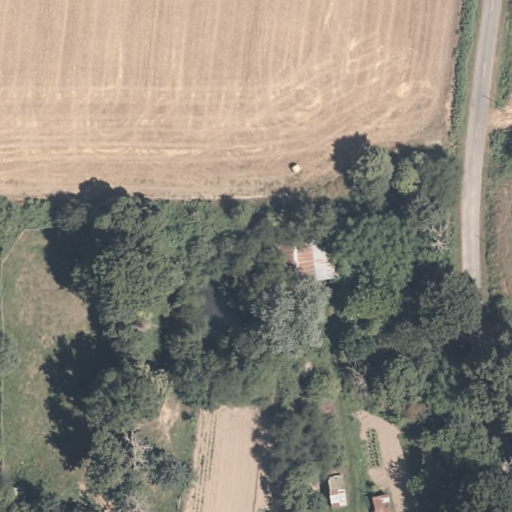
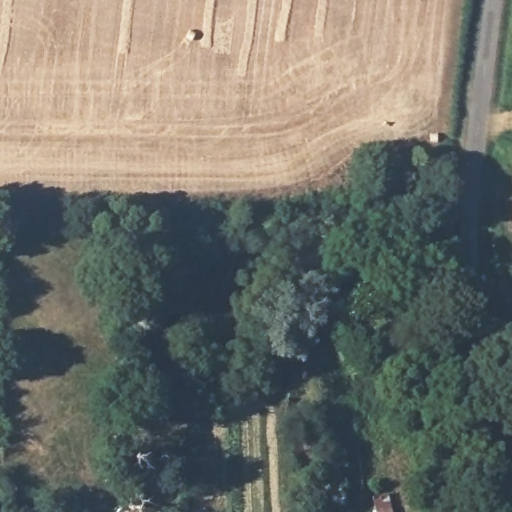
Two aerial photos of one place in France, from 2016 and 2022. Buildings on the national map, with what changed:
unchanged [(396,168),(398,181),(385,181),(383,169),(396,168)]
unchanged [(326,237),(331,275),(272,281),(267,243),(326,237)]

